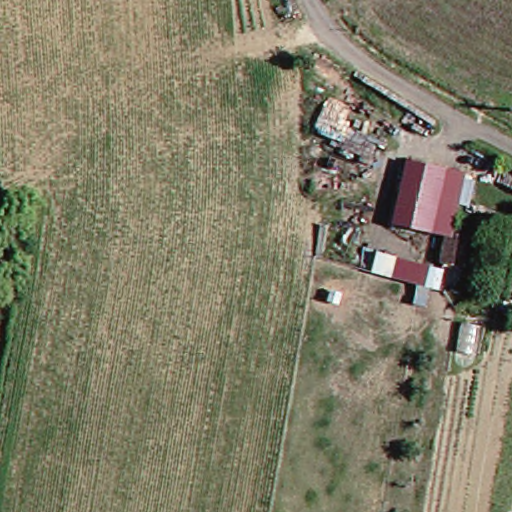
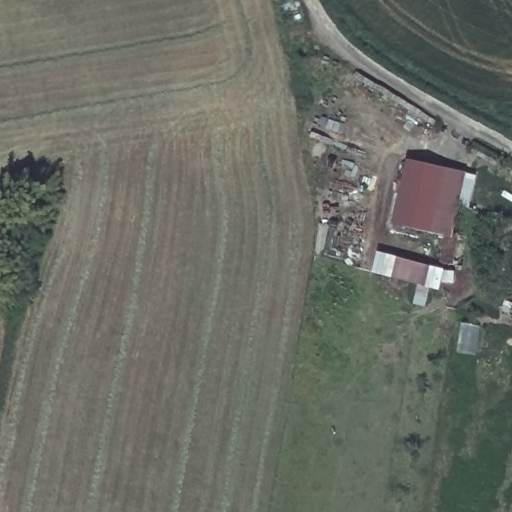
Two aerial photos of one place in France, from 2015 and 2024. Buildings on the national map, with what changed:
unchanged [(441,239),(406,229),(417,172),(453,181),(441,239)]
unchanged [(447,241),(460,243),(457,273),(443,271),(447,241)]
unchanged [(372,254),(443,272),(437,299),(365,277),(372,254)]

